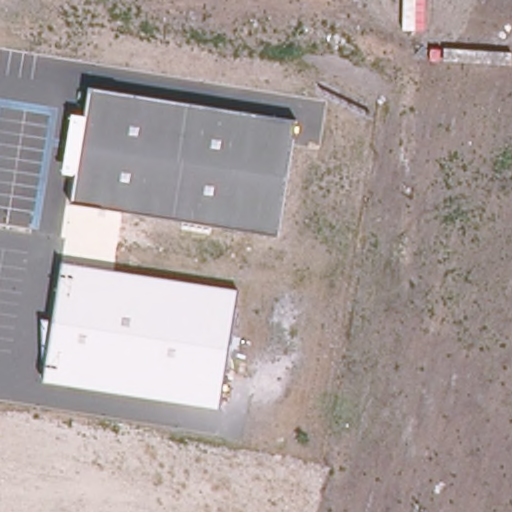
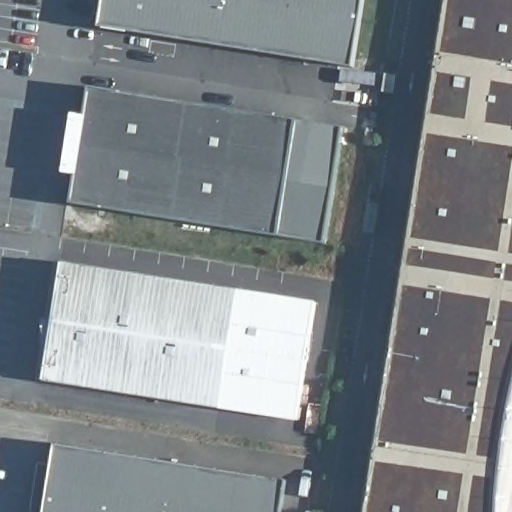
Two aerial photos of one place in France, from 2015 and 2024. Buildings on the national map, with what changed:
new [(102,0),(362,0),(352,67),(98,28),(102,0)]
new [(510,416),(503,462),(498,506),(498,512),(365,512),(446,0),(512,0),(512,405),(510,416)]
unchanged [(278,237),(71,204),(76,176),(64,174),(73,114),(85,116),(90,87),(295,120),(278,237)]
new [(295,120),(344,128),(326,244),(278,237),(295,120)]
unchanged [(320,303),(300,424),(218,411),(43,382),(65,261),(238,288),(320,303)]
new [(288,479),(282,512),(46,512),(57,442),(288,479)]

